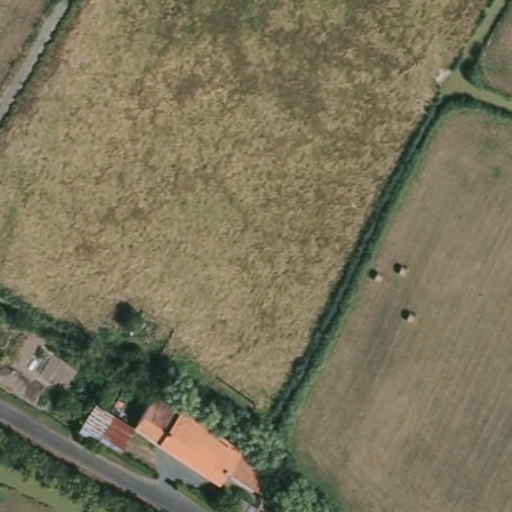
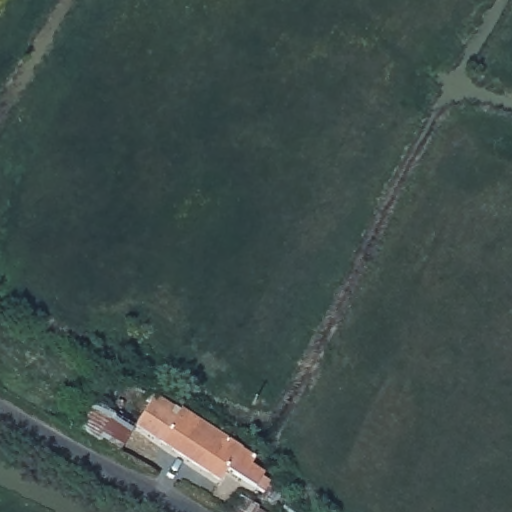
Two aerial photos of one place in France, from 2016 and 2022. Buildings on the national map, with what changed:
unchanged [(241,448),(245,445),(255,450),(252,458),(267,465),(255,489),(226,472),(219,484),(133,433),(150,400),(241,448)]
unchanged [(93,443),(109,419),(133,433),(119,456),(93,443)]

